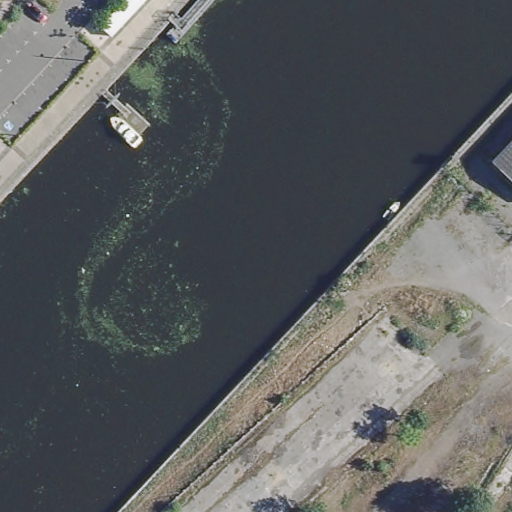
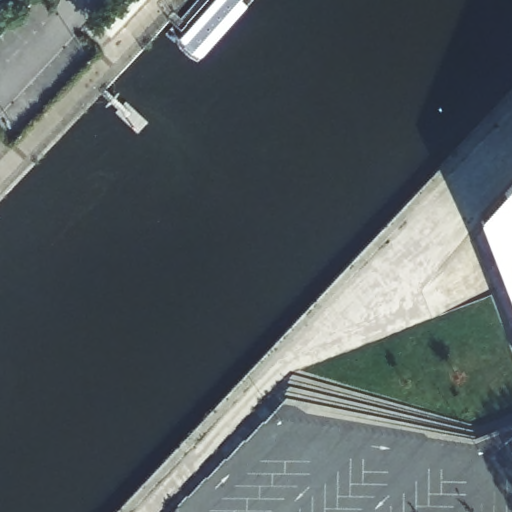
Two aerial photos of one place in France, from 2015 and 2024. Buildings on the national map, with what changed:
demolished [(490,164),(512,141),(512,184),(490,164)]
new [(512,182),(512,302),(480,219),(512,182)]

